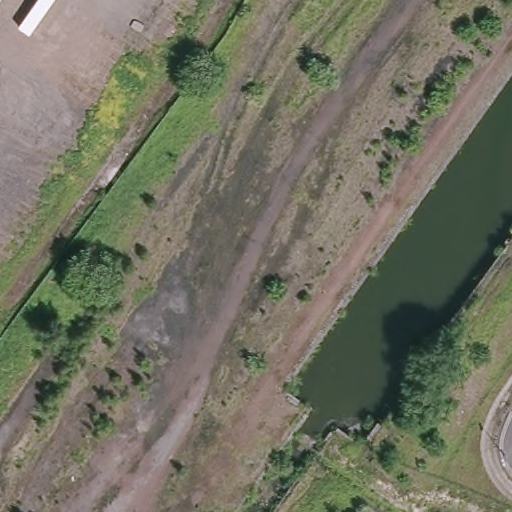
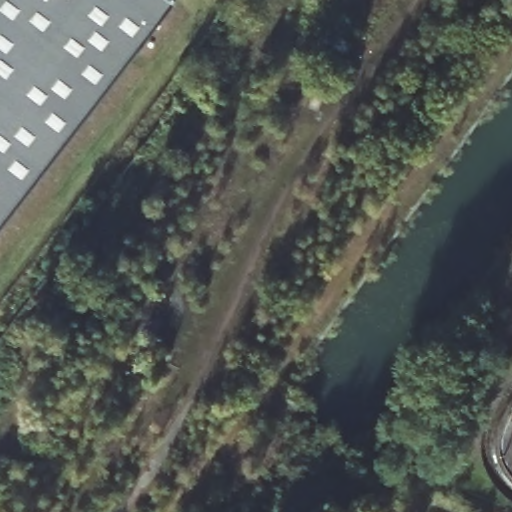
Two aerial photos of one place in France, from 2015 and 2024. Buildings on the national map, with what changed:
new [(0,220),(0,0),(158,0),(162,4),(0,220)]

